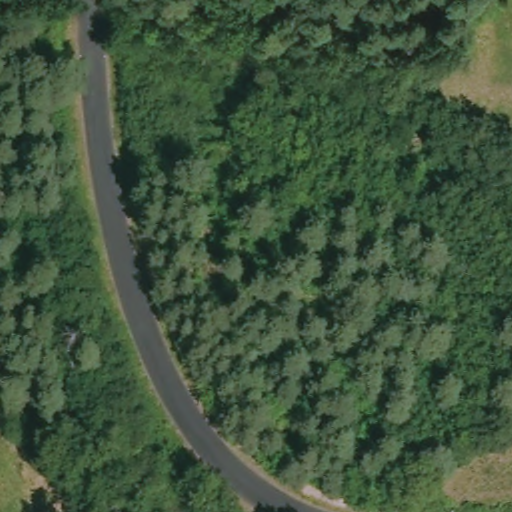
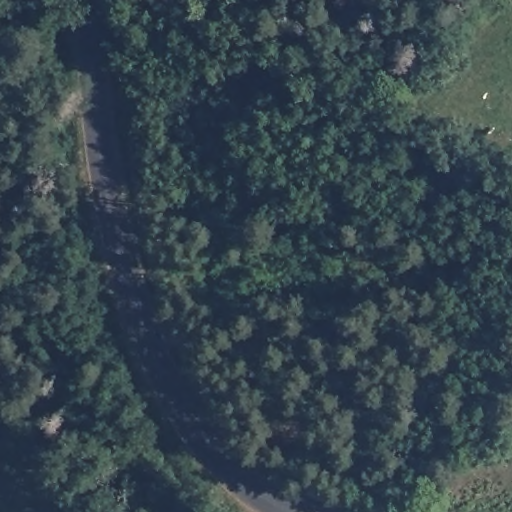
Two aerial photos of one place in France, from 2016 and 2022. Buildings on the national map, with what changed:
unchanged [(25,4),(26,0),(42,0),(41,5),(25,4)]

